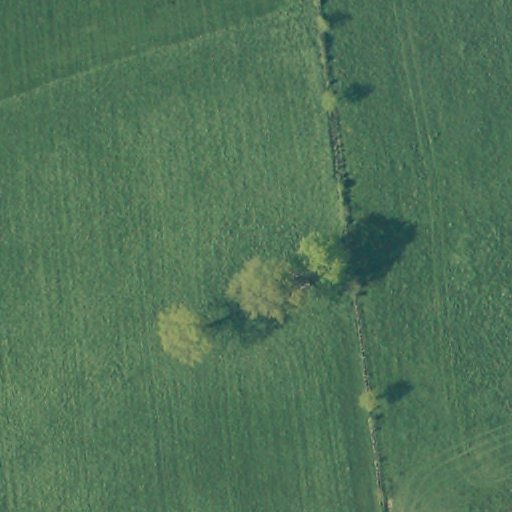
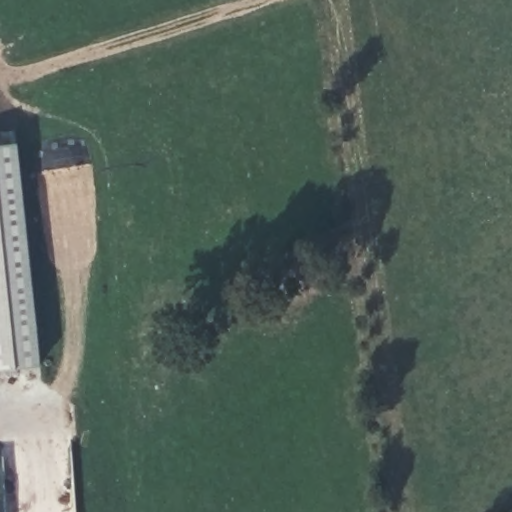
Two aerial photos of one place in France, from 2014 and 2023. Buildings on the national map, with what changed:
new [(0,371),(0,147),(18,145),(42,367),(0,371)]

